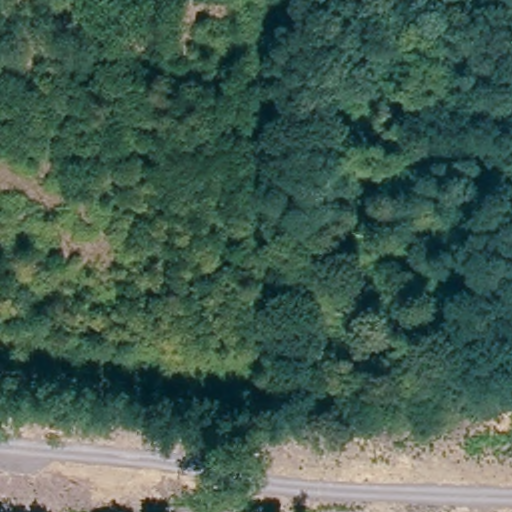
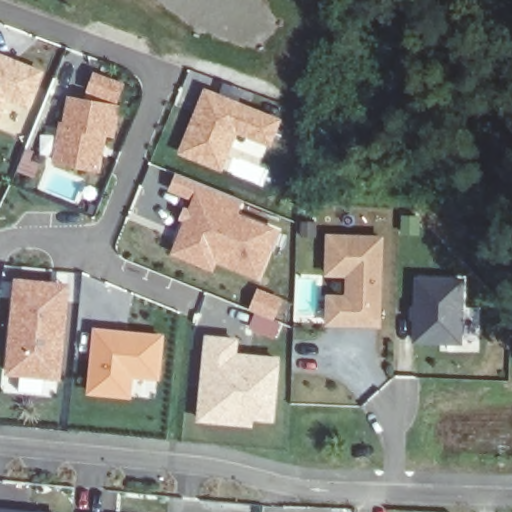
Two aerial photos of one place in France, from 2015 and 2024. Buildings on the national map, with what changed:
new [(45,69),(28,110),(7,102),(0,119),(0,51),(45,69)]
new [(203,86),(281,118),(267,148),(236,136),(222,173),(175,154),(203,86)]
new [(114,109),(110,136),(102,135),(97,170),(54,161),(59,124),(64,124),(67,100),(114,109)]
new [(174,171),(243,199),(239,210),(282,227),(258,282),(215,264),(211,273),(169,254),(181,222),(177,220),(187,200),(166,192),(174,171)]
new [(398,213),(413,214),(413,229),(397,229),(398,213)]
new [(383,236),(381,329),(324,327),(325,294),(344,294),(343,278),(324,277),(324,234),(383,236)]
new [(12,277),(70,283),(59,382),(56,398),(1,392),(2,375),(12,277)]
new [(464,279),(462,344),(411,343),(412,278),(464,279)]
new [(257,287),(284,298),(275,320),(281,323),(274,339),(247,329),(254,312),(247,309),(257,287)]
new [(92,327),(164,334),(159,382),(134,379),(131,401),(84,395),(92,327)]
new [(203,333),(239,338),(236,351),(280,356),(273,423),(253,421),(252,428),(194,422),(203,333)]
new [(46,512),(0,512),(0,508),(46,512)]

